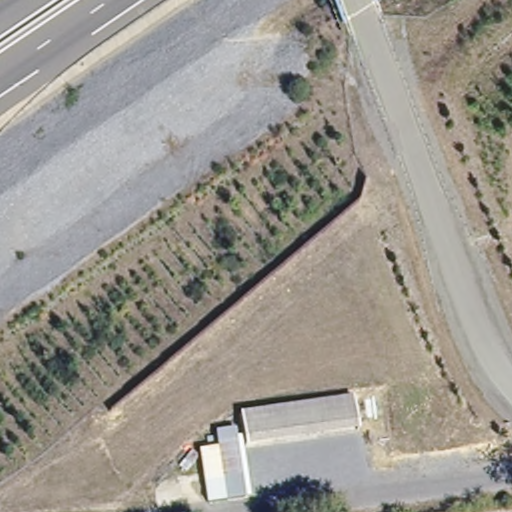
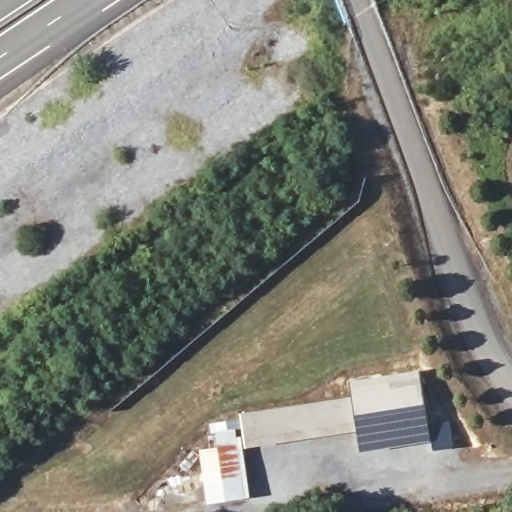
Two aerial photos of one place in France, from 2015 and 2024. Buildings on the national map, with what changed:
new [(354,401),(351,382),(419,370),(425,404),(429,424),(431,440),(361,451),(359,433),(354,400),(354,401)]
unchanged [(245,450),(241,417),(354,400),(359,433),(245,450)]
new [(448,421),(452,447),(433,450),(429,424),(448,421)]
unchanged [(244,500),(208,505),(201,454),(219,451),(217,436),(234,433),(239,469),(244,500)]

